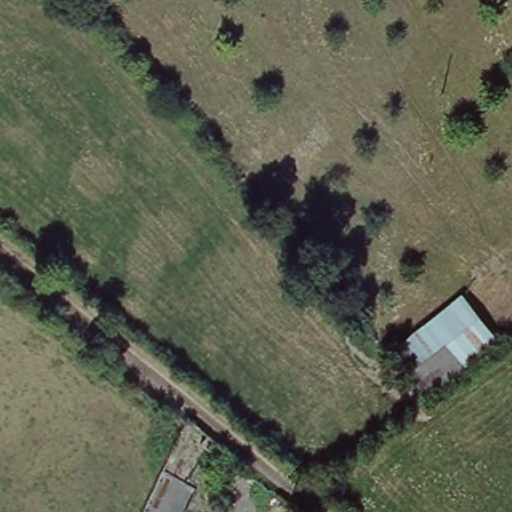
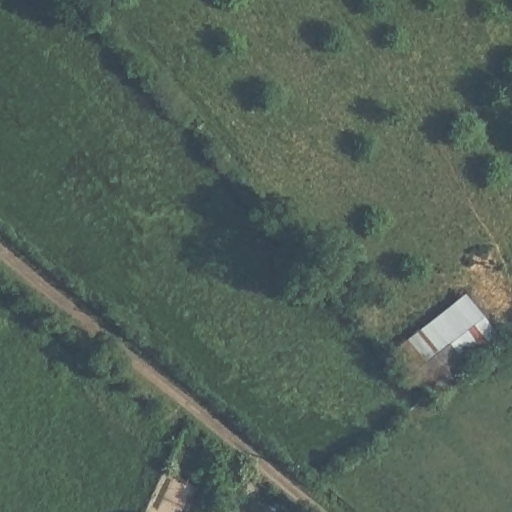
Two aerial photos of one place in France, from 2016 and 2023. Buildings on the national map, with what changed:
unchanged [(497,339),(421,393),(393,345),(461,294),(497,339)]
unchanged [(217,447),(207,458),(197,446),(200,442),(182,427),(184,420),(217,447)]

